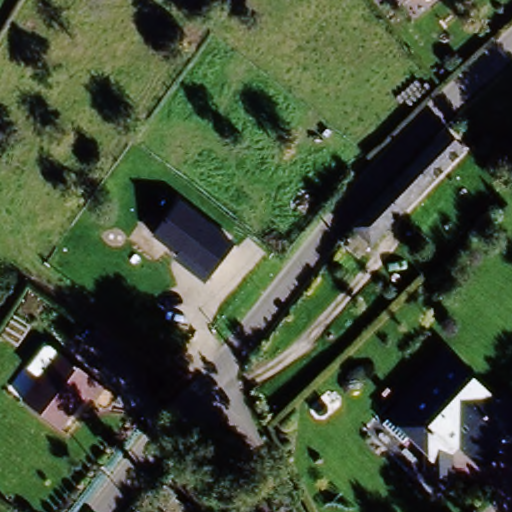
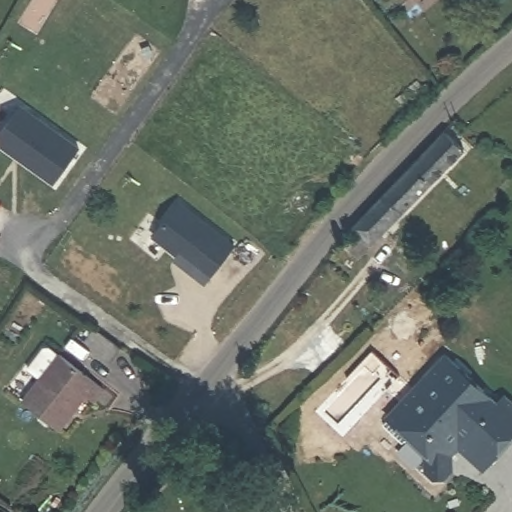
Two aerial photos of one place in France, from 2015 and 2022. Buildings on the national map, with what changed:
new [(82,148),(57,184),(0,143),(0,139),(0,135),(21,104),(82,148)]
unchanged [(372,246),(350,227),(443,132),(463,151),(372,246)]
unchanged [(175,260),(178,255),(152,237),(180,202),(236,243),(207,284),(175,260)]
demolished [(86,301),(112,320),(100,336),(74,317),(86,301)]
unchanged [(83,402),(58,435),(20,406),(37,384),(24,374),(41,351),(47,351),(103,390),(91,408),(83,402)]
unchanged [(454,447),(442,460),(445,467),(444,473),(440,478),(434,480),(427,479),(423,475),(421,469),(422,463),(424,461),(402,438),(383,420),(397,405),(443,358),(492,405),(499,399),(512,412),(512,438),(496,454),(479,472),(454,447)]
unchanged [(240,507),(255,503),(259,512),(217,512),(238,501),(240,507)]

